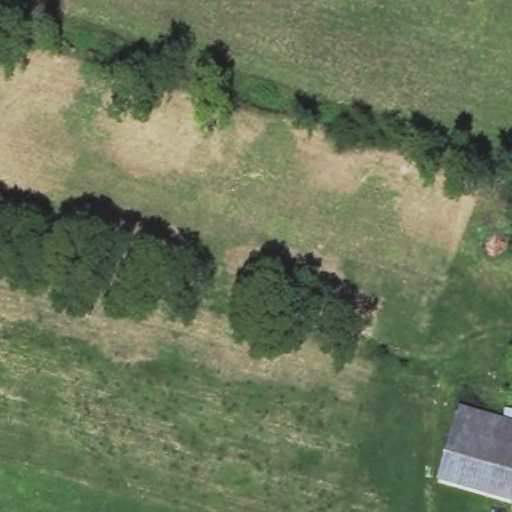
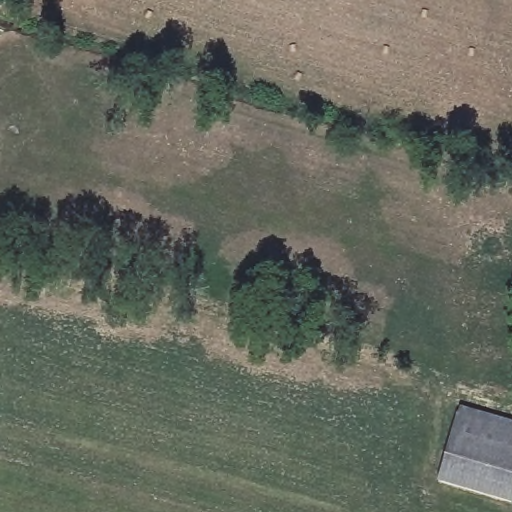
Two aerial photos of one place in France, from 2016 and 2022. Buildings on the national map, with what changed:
unchanged [(512,421),(512,502),(437,480),(459,408),(512,421)]

